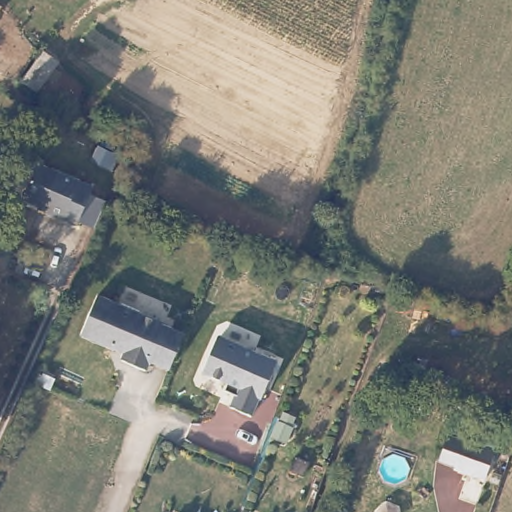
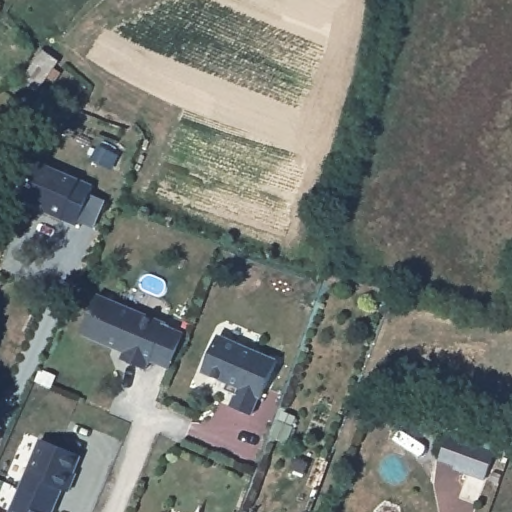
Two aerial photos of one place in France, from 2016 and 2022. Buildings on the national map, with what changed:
unchanged [(41,45),(66,62),(41,97),(15,80),(41,45)]
unchanged [(91,182),(77,221),(47,207),(48,203),(26,195),(39,162),(91,182)]
unchanged [(153,357),(152,360),(151,360),(149,366),(124,357),(126,350),(83,332),(99,293),(167,320),(167,322),(185,330),(171,365),(153,357)]
unchanged [(265,397),(262,396),(255,415),(234,406),(239,395),(227,390),(230,383),(211,376),(207,366),(216,342),(226,338),(280,360),(265,397)]
unchanged [(493,452),(483,481),(452,470),(453,467),(436,462),(445,438),(461,444),(462,442),(493,452)]
new [(40,441),(80,456),(74,472),(76,473),(69,492),(62,488),(56,503),(21,489),(40,441)]
new [(21,489),(56,503),(53,512),(12,512),(21,489)]

